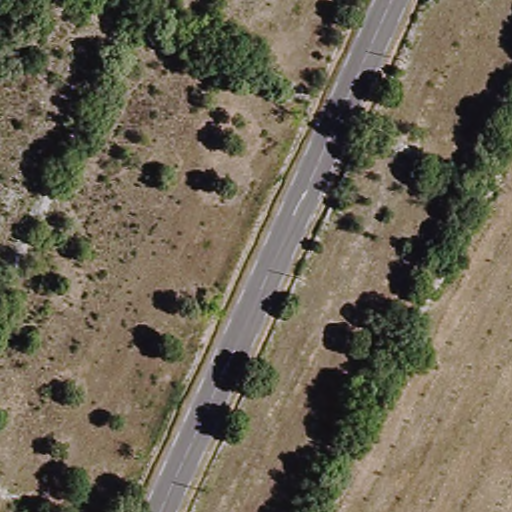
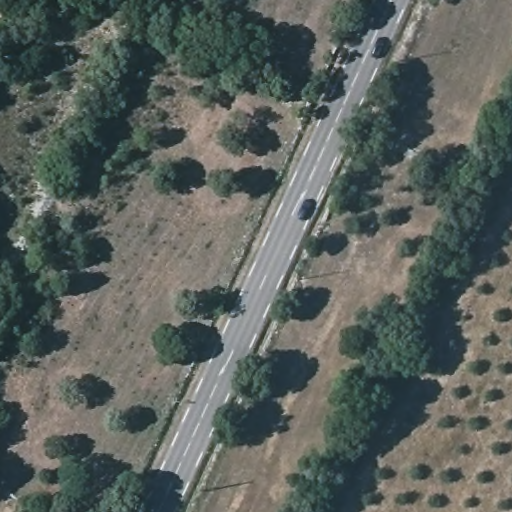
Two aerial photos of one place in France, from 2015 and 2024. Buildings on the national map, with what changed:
[]

